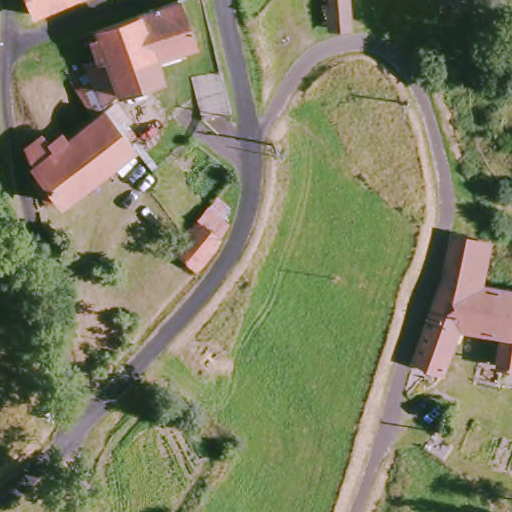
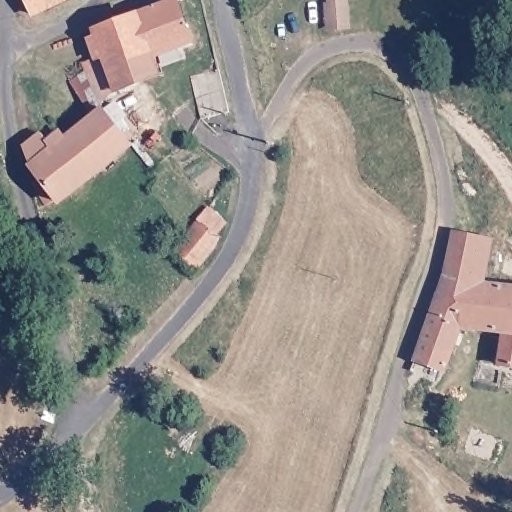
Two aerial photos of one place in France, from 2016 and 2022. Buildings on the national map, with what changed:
unchanged [(32,11),(27,0),(59,0),(32,11)]
unchanged [(94,25),(166,0),(176,0),(191,41),(151,58),(157,77),(123,90),(104,93),(97,94),(102,107),(95,115),(69,81),(81,69),(78,55),(99,50),(91,26),(94,25)]
unchanged [(335,29),(331,29),(327,28),(323,23),(321,16),(320,0),(341,0),(343,27),(335,29)]
unchanged [(229,108),(204,120),(188,79),(215,68),(229,108)]
unchanged [(98,119),(107,111),(134,146),(72,195),(47,210),(36,189),(45,181),(32,164),(26,146),(45,134),(53,147),(95,115),(98,119)]
unchanged [(208,249),(194,267),(171,242),(185,224),(196,211),(221,225),(211,243),(208,249)]
unchanged [(412,395),(400,385),(413,355),(461,241),(491,249),(482,278),(512,287),(512,370),(492,368),(500,332),(458,325),(441,368),(437,376),(412,395)]

